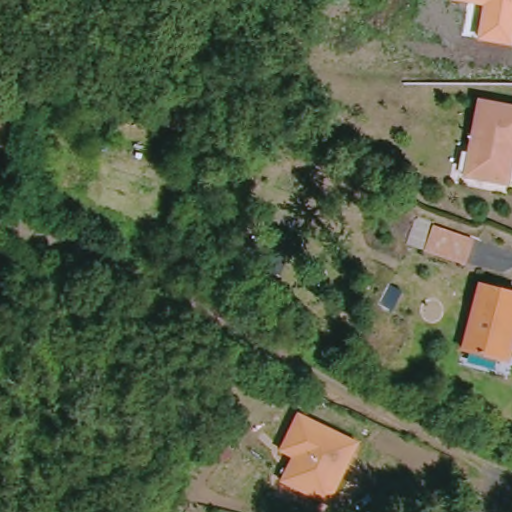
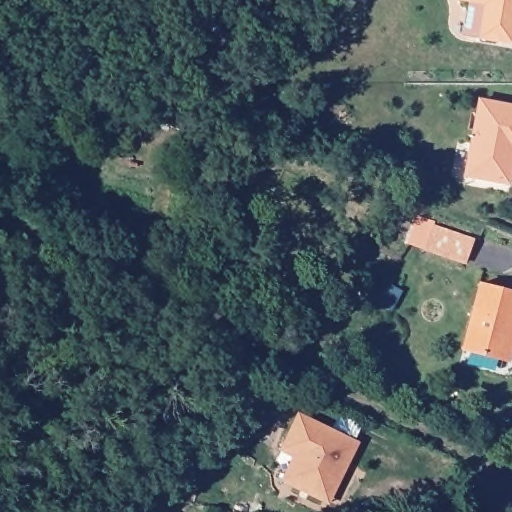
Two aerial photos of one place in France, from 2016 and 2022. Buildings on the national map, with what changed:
unchanged [(479,39),(483,5),(454,0),(512,0),(512,44),(479,39)]
unchanged [(472,181),(486,107),(512,111),(512,174),(509,190),(472,181)]
unchanged [(460,258),(425,242),(433,220),(469,236),(460,258)]
unchanged [(468,352),(489,287),(512,296),(512,348),(506,366),(468,352)]
unchanged [(361,443),(330,507),(282,485),(293,459),(281,452),(298,415),(361,443)]

